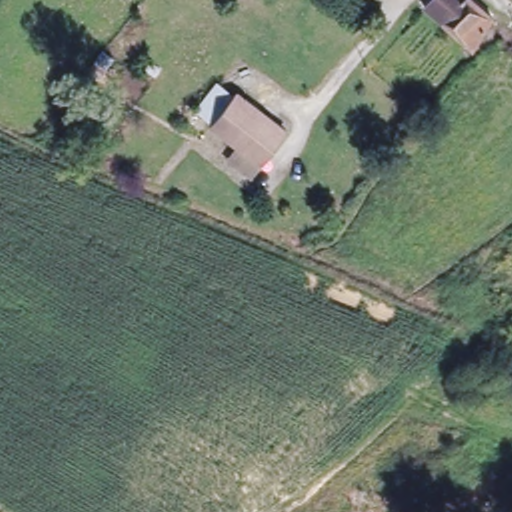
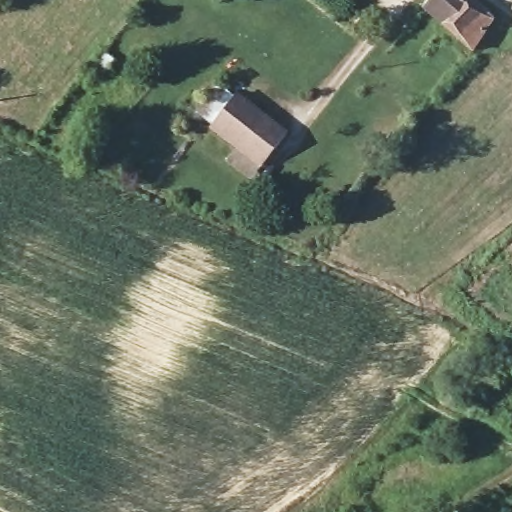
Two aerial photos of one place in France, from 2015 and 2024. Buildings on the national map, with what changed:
unchanged [(432,0),(474,0),(495,17),(475,42),(427,6),(432,0)]
unchanged [(198,112),(222,79),(275,116),(251,152),(198,112)]

